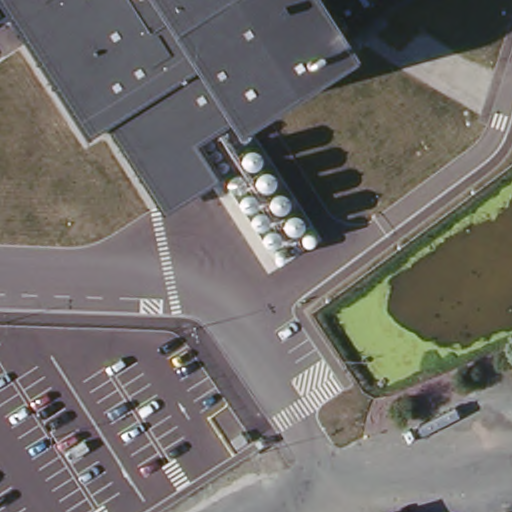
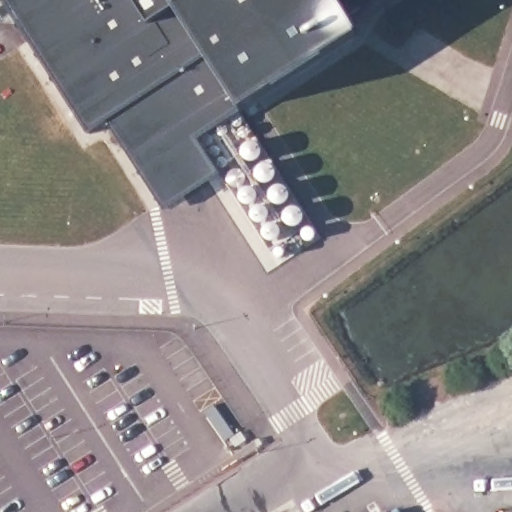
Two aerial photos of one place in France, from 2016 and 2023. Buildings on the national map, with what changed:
unchanged [(349,25),(358,39),(241,113),(313,235),(277,258),(222,171),(163,212),(106,124),(87,136),(0,1),(0,0),(389,0),(349,25)]
unchanged [(512,512),(501,512),(501,510),(512,512)]
unchanged [(386,512),(382,512),(384,511),(386,512)]

